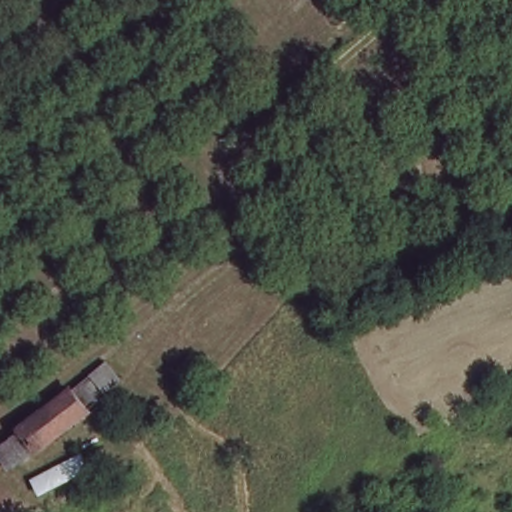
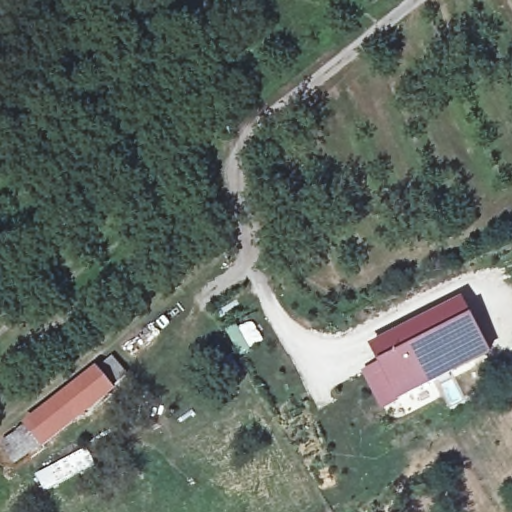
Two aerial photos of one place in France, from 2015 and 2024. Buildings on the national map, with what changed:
new [(490,356),(398,402),(383,410),(362,370),(377,362),(368,345),(461,296),(490,356)]
unchanged [(80,379),(107,358),(125,383),(97,403),(40,444),(16,463),(0,441),(0,437),(20,422),(80,379)]

